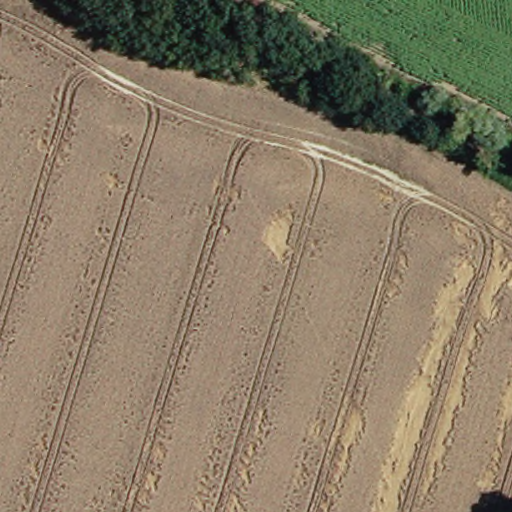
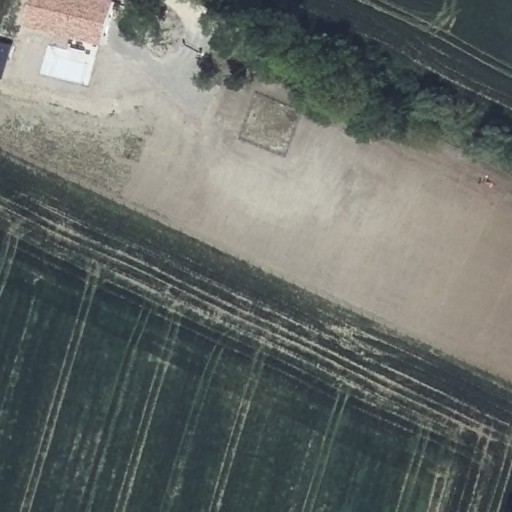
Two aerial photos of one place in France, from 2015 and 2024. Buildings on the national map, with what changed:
new [(29,26),(35,0),(117,0),(104,45),(29,26)]

